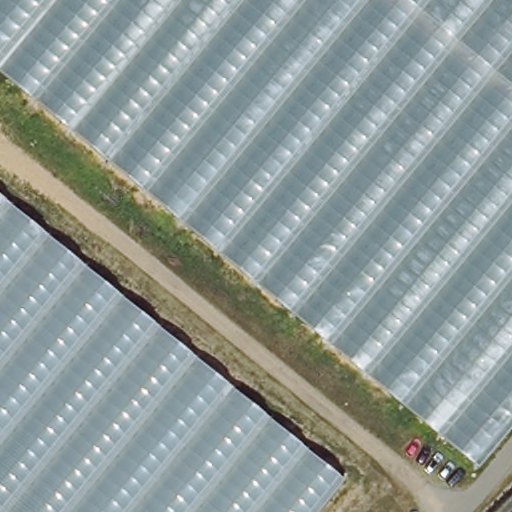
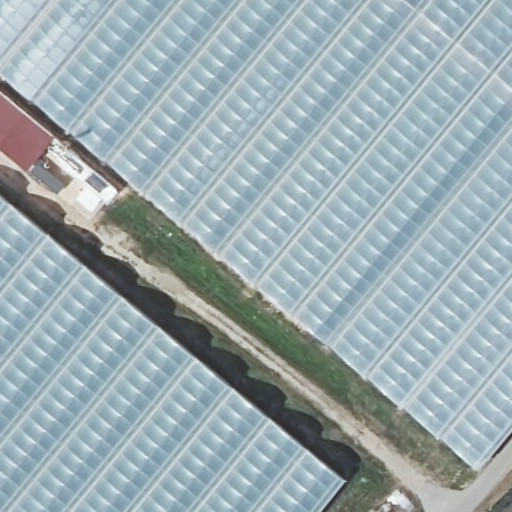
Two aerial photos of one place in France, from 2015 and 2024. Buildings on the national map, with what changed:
unchanged [(0,71),(0,0),(512,0),(512,431),(480,468),(0,71)]
new [(54,137),(26,168),(0,147),(0,92),(54,137)]
unchanged [(324,512),(0,512),(0,196),(348,483),(324,512)]

